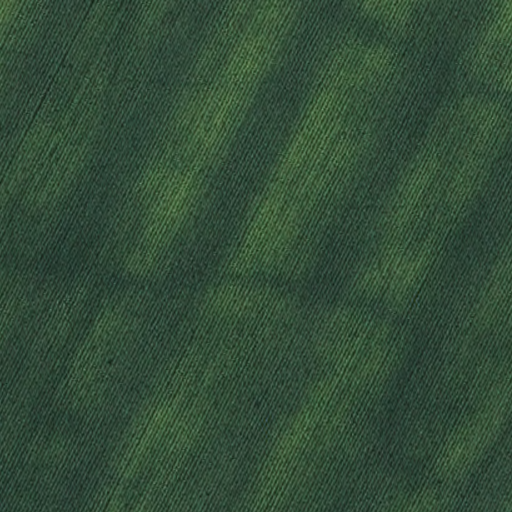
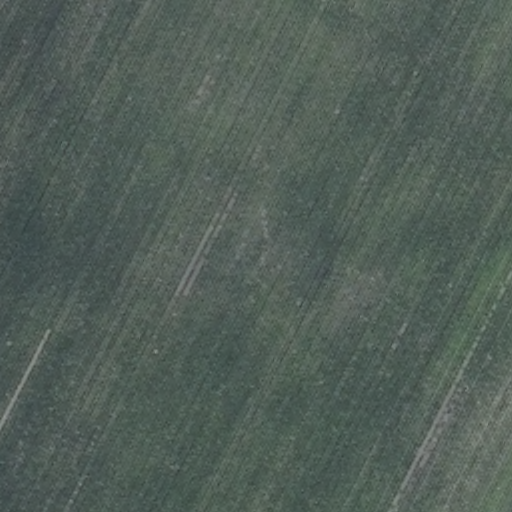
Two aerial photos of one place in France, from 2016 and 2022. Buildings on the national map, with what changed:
[]

